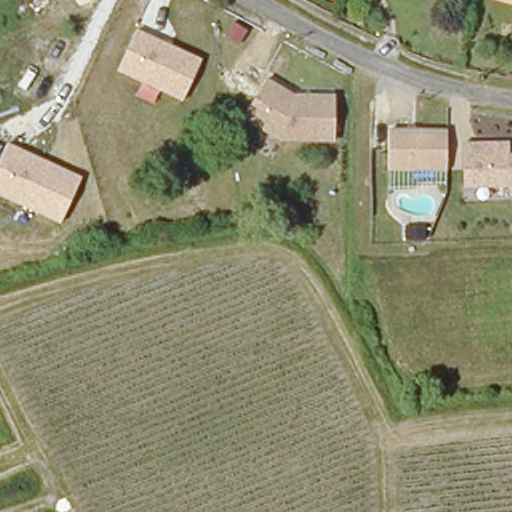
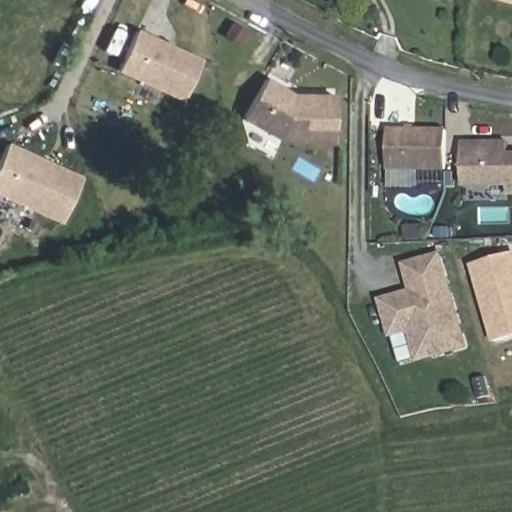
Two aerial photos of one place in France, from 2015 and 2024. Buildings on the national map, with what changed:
unchanged [(497,0),(512,0),(512,4),(497,0)]
unchanged [(203,57),(184,102),(117,72),(137,28),(203,57)]
unchanged [(291,95),(334,96),(330,144),(278,143),(242,120),(266,78),(291,95)]
unchanged [(447,128),(448,171),(391,170),(390,129),(447,128)]
unchanged [(510,141),(511,153),(512,153),(512,197),(510,197),(509,188),(465,188),(462,142),(510,141)]
unchanged [(62,224),(0,196),(0,160),(8,143),(83,175),(62,224)]
new [(403,263),(443,252),(470,347),(417,364),(409,333),(392,338),(380,301),(410,290),(403,263)]
new [(493,344),(470,266),(512,255),(512,339),(493,344)]

